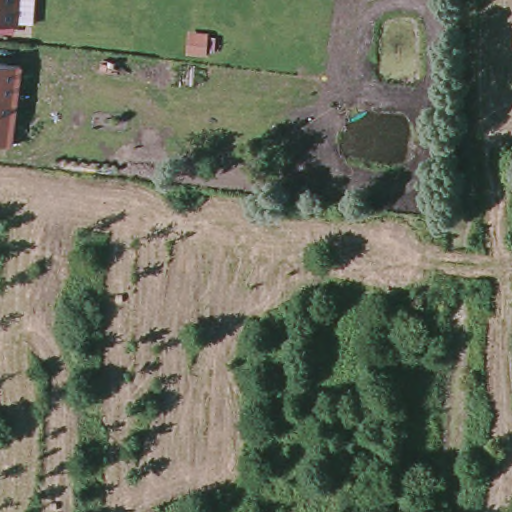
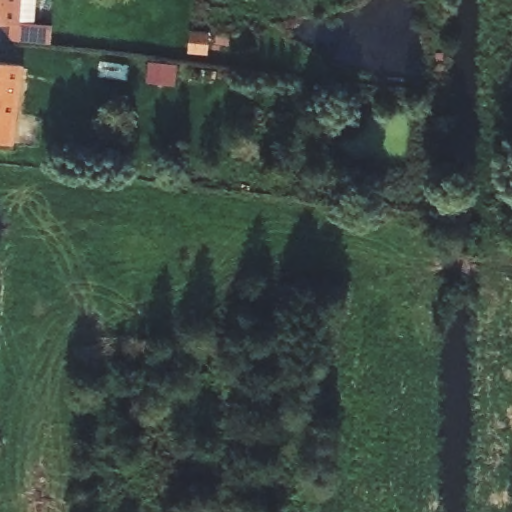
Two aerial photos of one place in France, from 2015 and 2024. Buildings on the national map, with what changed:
unchanged [(0,0),(19,0),(17,26),(0,25),(0,0)]
unchanged [(0,144),(0,60),(21,62),(13,145),(0,144)]

